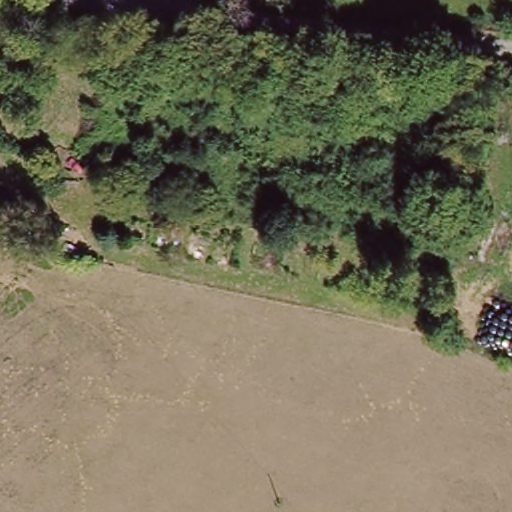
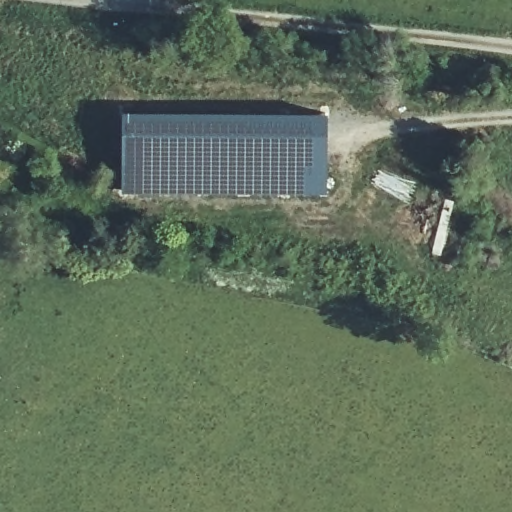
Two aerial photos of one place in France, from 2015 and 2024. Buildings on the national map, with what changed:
new [(120,109),(257,109),(326,111),(325,194),(119,193),(120,109)]

